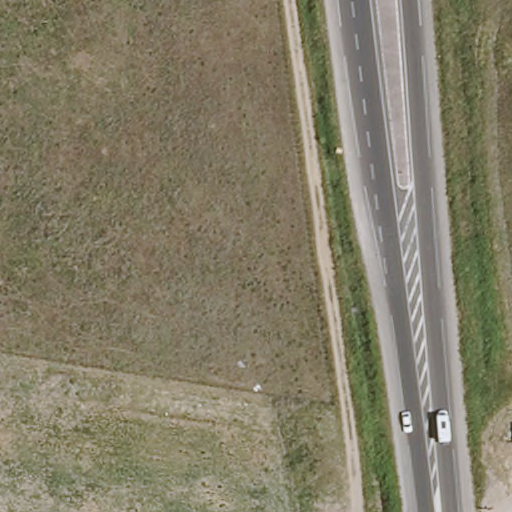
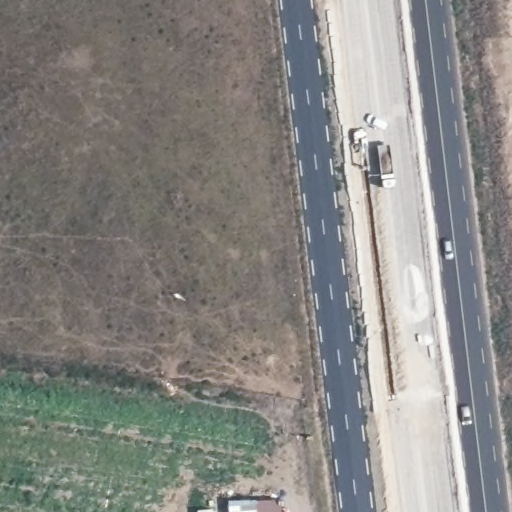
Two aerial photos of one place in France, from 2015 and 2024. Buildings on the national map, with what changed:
new [(230,502),(282,499),(282,512),(230,512),(230,502)]

